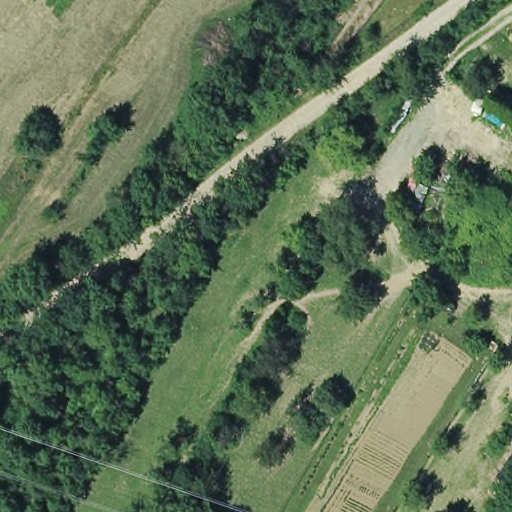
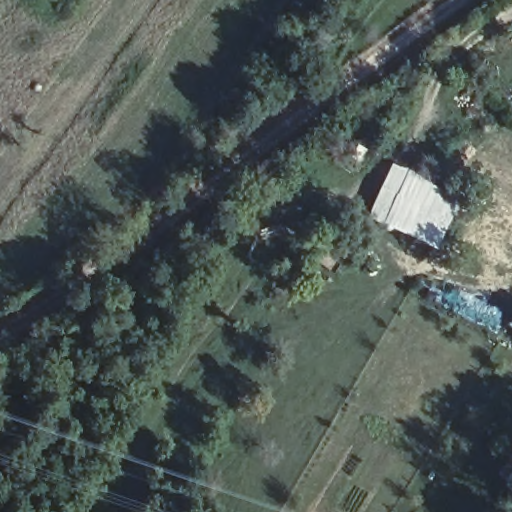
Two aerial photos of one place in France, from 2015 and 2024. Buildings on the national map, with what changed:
new [(391,163),(461,197),(437,251),(365,218),(391,163)]

